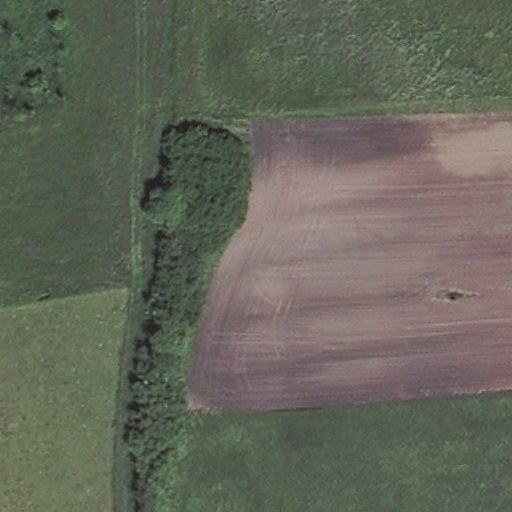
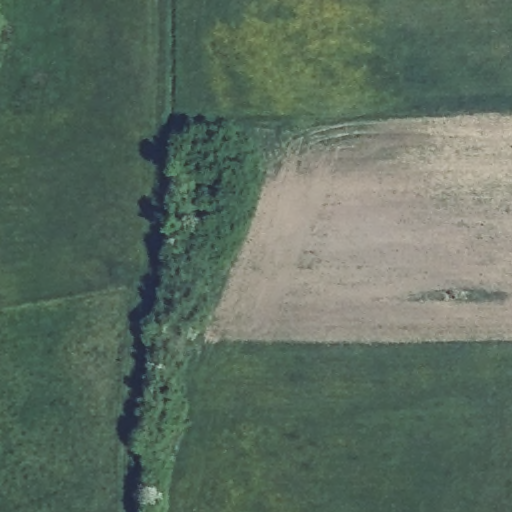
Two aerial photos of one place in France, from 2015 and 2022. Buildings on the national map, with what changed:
[]

